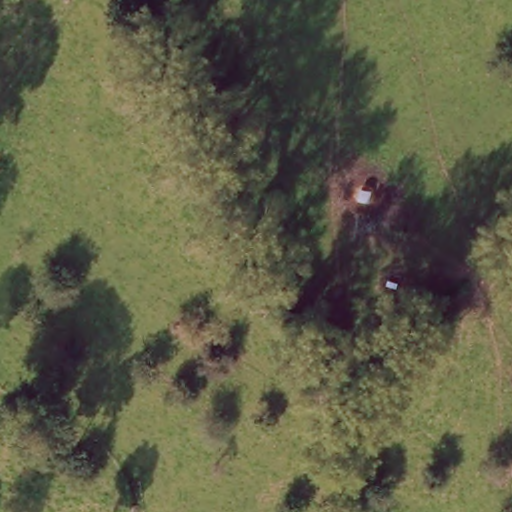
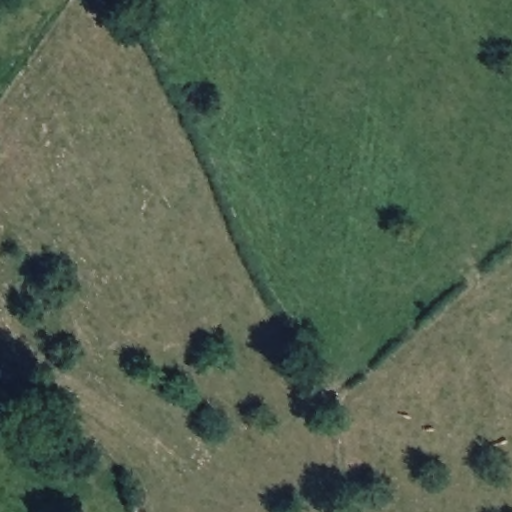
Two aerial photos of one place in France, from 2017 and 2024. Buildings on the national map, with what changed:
[]

